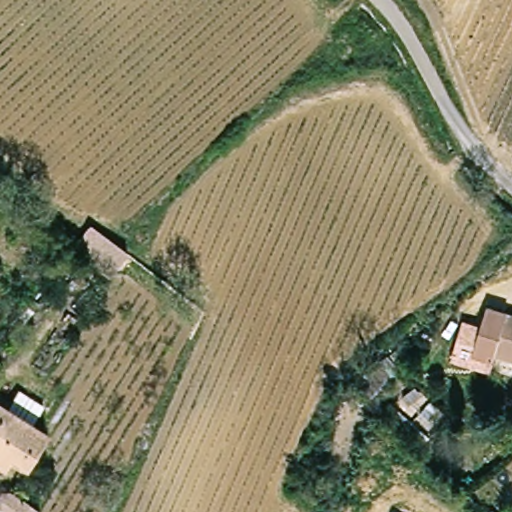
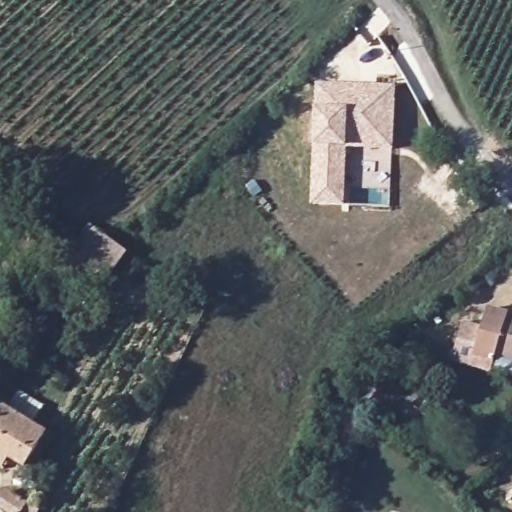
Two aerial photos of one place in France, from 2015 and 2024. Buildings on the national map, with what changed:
new [(397,86),(394,152),(347,151),(345,207),(311,207),(314,148),(315,108),(317,108),(316,83),(397,86)]
unchanged [(88,222),(130,254),(114,277),(75,245),(88,222)]
unchanged [(496,369),(471,363),(454,359),(462,328),(479,332),(486,309),(512,315),(512,358),(500,356),(496,369)]
unchanged [(44,432),(22,467),(5,456),(0,462),(0,402),(44,432)]
unchanged [(3,488),(39,512),(0,512),(0,493),(3,488)]

